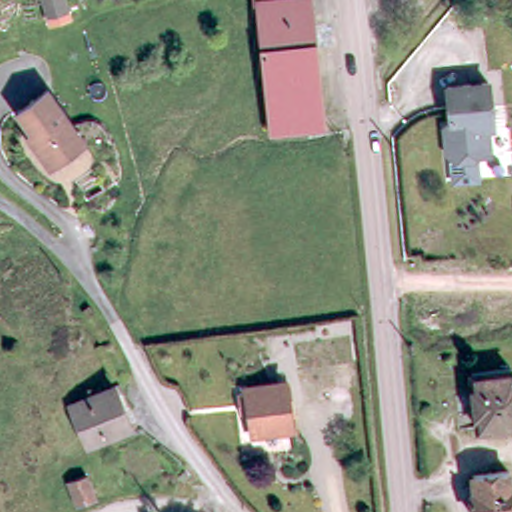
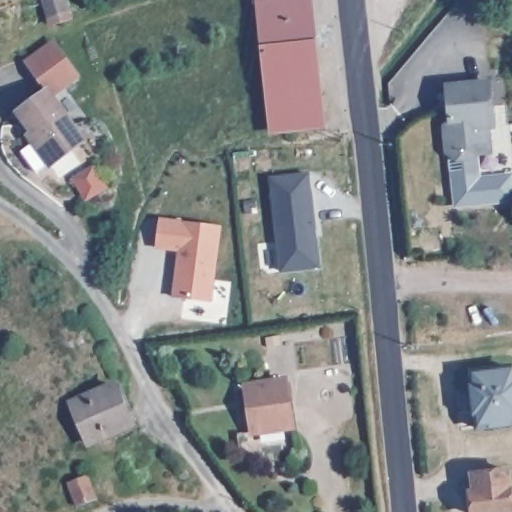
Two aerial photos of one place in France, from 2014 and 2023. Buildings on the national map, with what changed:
unchanged [(49,16),(43,0),(65,0),(69,11),(72,19),(52,25),(49,16)]
unchanged [(257,3),(256,0),(309,0),(322,124),(273,129),(261,3),(257,3)]
new [(52,88),(46,92),(24,62),(55,40),(81,77),(57,96),(52,88)]
unchanged [(490,152),(475,152),(472,158),(459,158),(452,151),(448,151),(447,124),(454,117),(452,84),(494,83),(496,127),(489,127),(490,134),(490,152)]
unchanged [(54,163),(32,134),(37,130),(22,110),(52,88),(87,139),(54,163)]
new [(73,180),(93,169),(105,189),(85,200),(73,180)]
new [(310,173),(320,267),(280,272),(270,178),(310,173)]
new [(220,227),(212,303),(174,298),(179,251),(158,248),(160,221),(220,227)]
unchanged [(512,373),(512,430),(487,433),(484,433),(477,377),(512,373)]
unchanged [(295,430),(257,435),(250,391),(288,385),(295,430)]
unchanged [(90,449),(74,408),(116,391),(132,431),(90,449)]
unchanged [(476,497),(481,497),(479,480),(512,475),(512,512),(478,512),(476,497)]
unchanged [(97,506),(79,512),(78,512),(70,487),(89,480),(97,506)]

